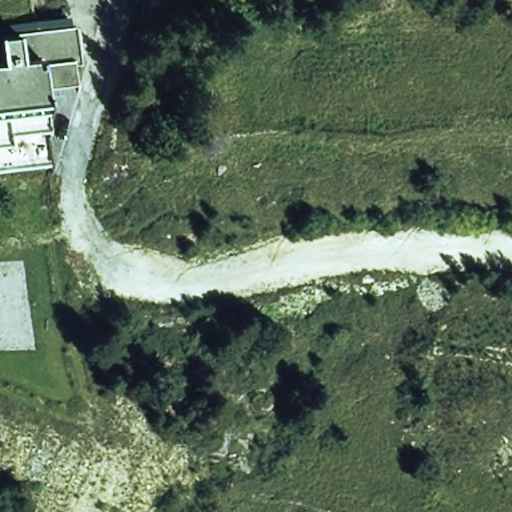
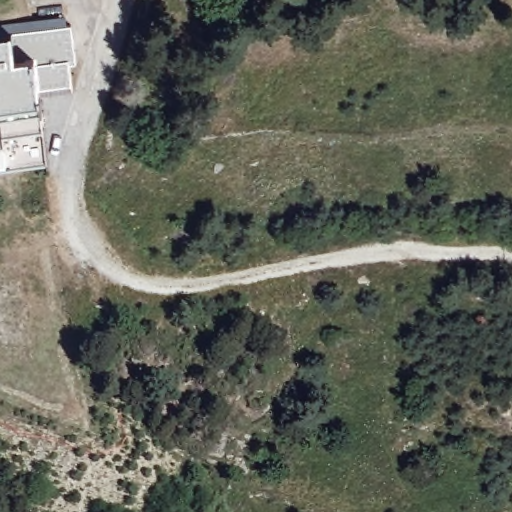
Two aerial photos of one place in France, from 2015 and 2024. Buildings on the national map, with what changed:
unchanged [(0,165),(0,35),(10,34),(10,33),(12,32),(72,24),(72,25),(75,25),(77,51),(75,51),(77,61),(70,62),(72,82),(39,86),(40,93),(41,93),(48,160),(0,165)]

